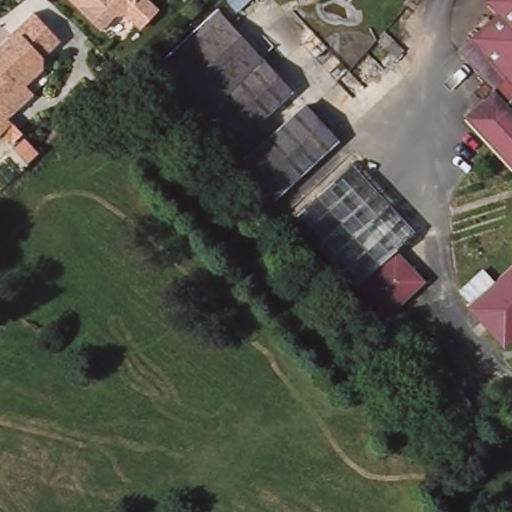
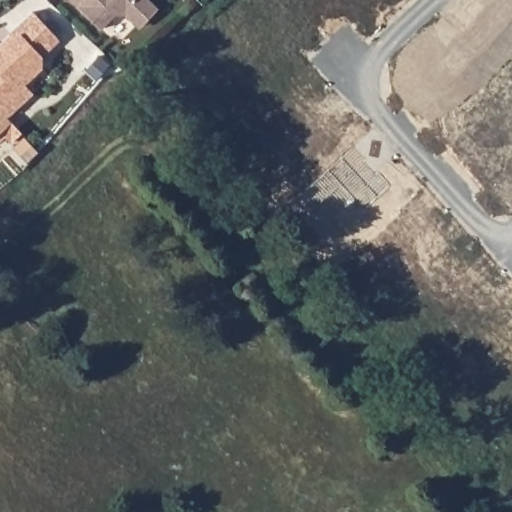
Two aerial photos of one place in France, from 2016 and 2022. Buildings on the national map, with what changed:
unchanged [(143,29),(123,10),(101,29),(69,0),(154,0),(164,6),(143,29)]
demolished [(480,1),(482,0),(512,0),(512,89),(503,79),(465,38),(492,14),(480,1)]
demolished [(225,11),(297,91),(235,149),(161,68),(225,11)]
unchanged [(30,15),(57,39),(29,94),(8,114),(0,105),(0,44),(30,15)]
demolished [(490,91),(503,79),(512,89),(512,95),(502,104),(512,115),(512,171),(462,117),(490,91)]
unchanged [(8,114),(43,152),(30,164),(2,135),(0,137),(0,105),(8,114)]
demolished [(305,105),(336,139),(275,196),(244,162),(305,105)]
demolished [(347,157),(410,226),(390,244),(420,276),(381,312),(351,280),(350,281),(287,213),(347,157)]
demolished [(278,211),(305,240),(295,249),(268,220),(278,211)]
demolished [(512,237),(512,238),(511,237),(512,237)]
demolished [(489,282),(512,261),(512,332),(497,345),(462,307),(466,303),(455,290),(477,270),(489,282)]
demolished [(465,393),(482,418),(464,430),(448,406),(465,393)]

